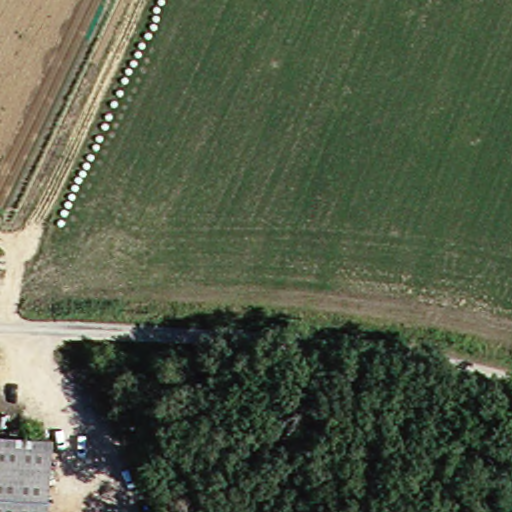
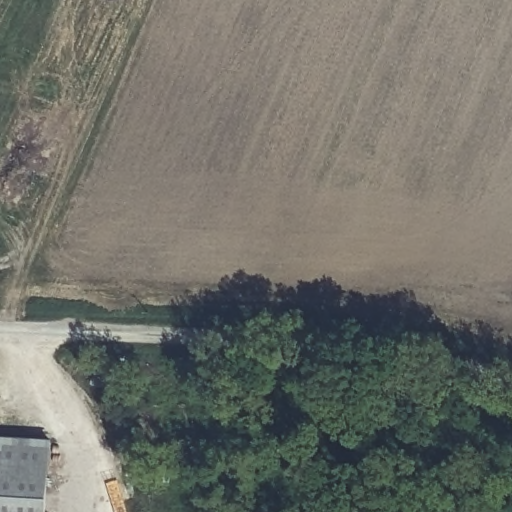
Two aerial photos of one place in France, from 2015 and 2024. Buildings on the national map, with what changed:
unchanged [(46,512),(0,512),(0,438),(52,442),(46,512)]

